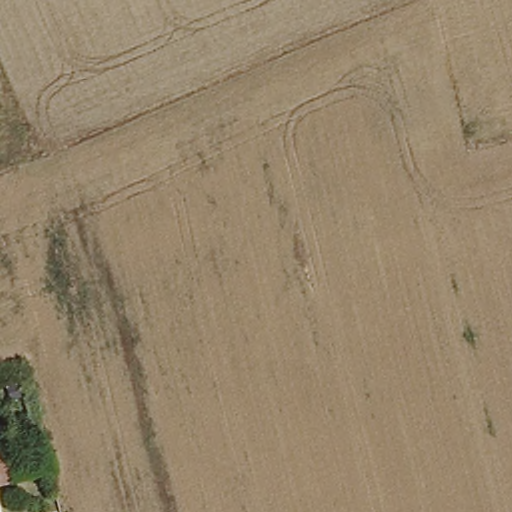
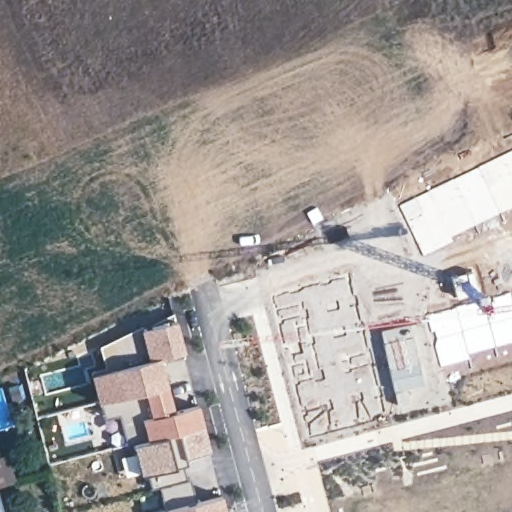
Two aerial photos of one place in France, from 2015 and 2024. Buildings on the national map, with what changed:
new [(399,205),(512,150),(512,206),(451,236),(453,240),(423,255),(399,205)]
new [(428,314),(511,291),(512,297),(512,341),(468,353),(469,358),(441,365),(428,314)]
new [(158,363),(163,385),(123,395),(109,341),(170,311),(181,351),(181,357),(158,363)]
new [(393,390),(388,368),(381,335),(389,333),(388,331),(395,330),(397,336),(409,333),(417,359),(423,382),(393,390)]
new [(168,402),(163,403),(166,411),(194,405),(200,425),(130,443),(124,445),(115,412),(100,415),(97,402),(89,371),(104,367),(99,346),(109,341),(123,395),(163,385),(168,402)]
new [(200,425),(206,450),(178,457),(184,480),(156,486),(148,489),(144,473),(138,475),(130,443),(200,425)]
unchanged [(0,482),(0,451),(10,448),(18,477),(0,482)]
new [(188,478),(192,495),(193,501),(218,495),(222,512),(157,512),(156,510),(162,510),(156,486),(184,480),(188,478)]

